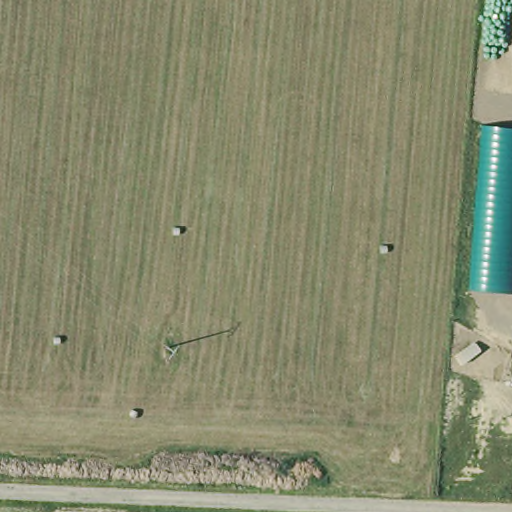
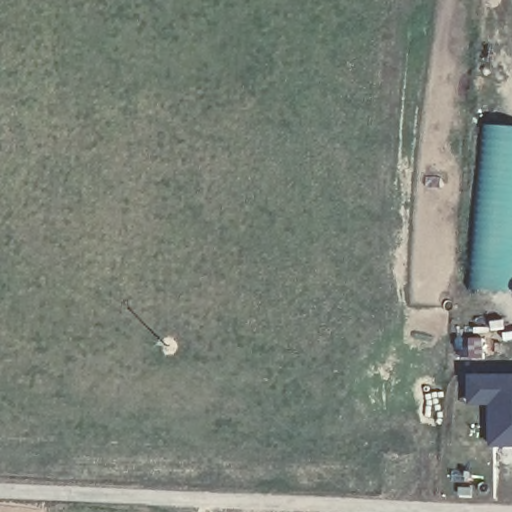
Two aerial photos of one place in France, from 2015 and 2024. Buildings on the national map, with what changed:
unchanged [(512,293),(474,291),(487,126),(512,127),(512,293)]
new [(512,449),(488,449),(486,407),(465,406),(466,377),(512,376),(512,449)]

